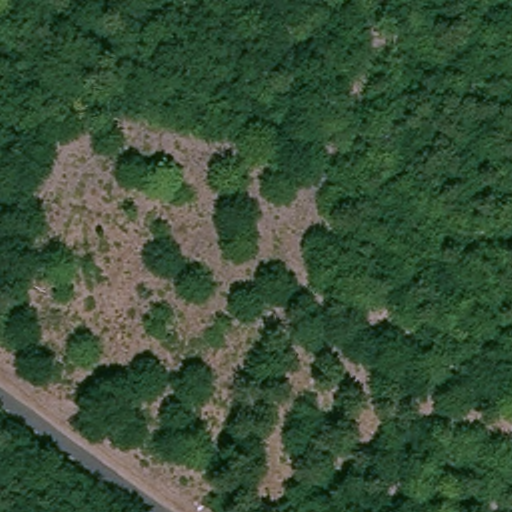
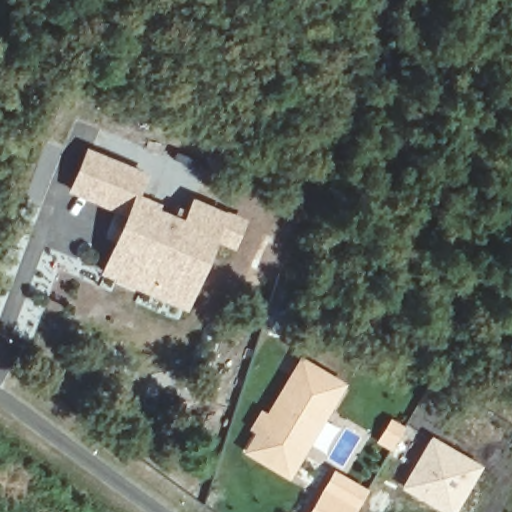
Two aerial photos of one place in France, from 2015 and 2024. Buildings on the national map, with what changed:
new [(100,274),(124,217),(68,192),(86,147),(148,174),(141,196),(160,203),(159,207),(183,219),(192,198),(227,213),(246,222),(235,250),(215,241),(187,310),(100,274)]
new [(255,432),(249,429),(260,410),(267,414),(301,358),(346,385),(290,480),(244,452),(255,432)]
new [(390,417),(406,427),(391,451),(375,441),(390,417)]
new [(484,464),(458,512),(441,512),(399,487),(430,435),(484,464)]
new [(358,508),(356,512),(311,512),(325,489),(358,508)]

